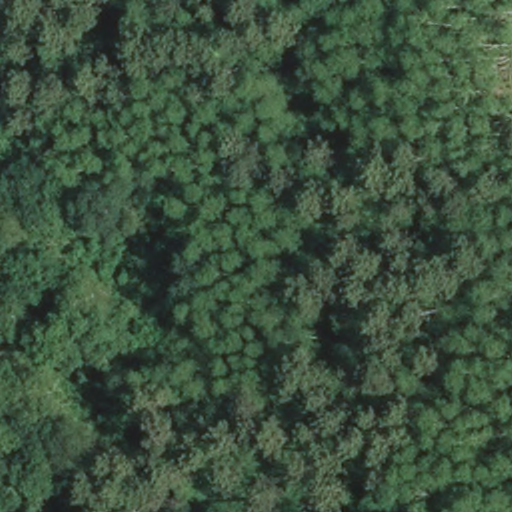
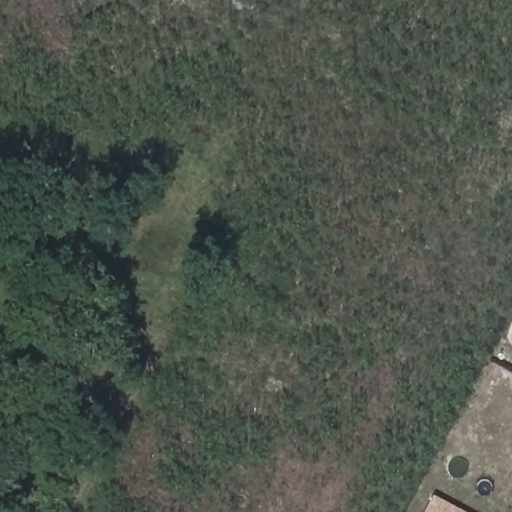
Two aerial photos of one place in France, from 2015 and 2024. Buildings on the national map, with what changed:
new [(464,512),(426,512),(435,497),(464,512)]

